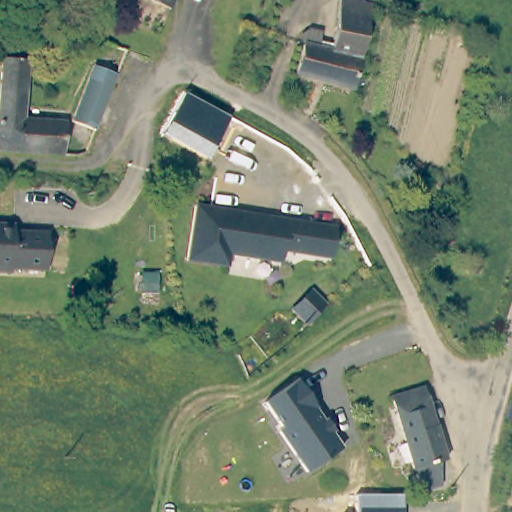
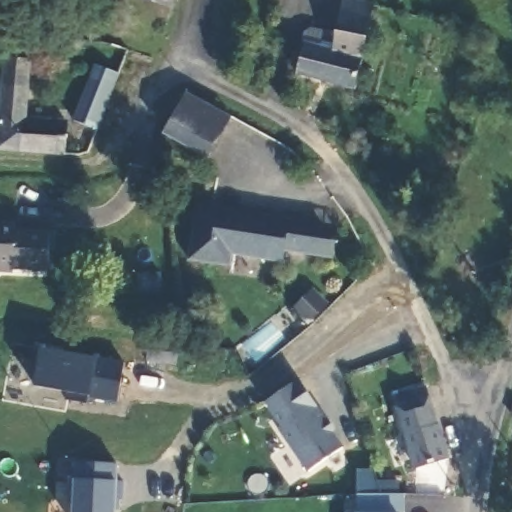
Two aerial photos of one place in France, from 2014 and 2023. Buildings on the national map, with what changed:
unchanged [(169,0),(165,10),(138,0),(169,0)]
unchanged [(290,78),(296,51),(330,57),(339,13),(342,0),(351,0),(372,5),(369,19),(353,89),(354,94),(290,79),(290,78)]
unchanged [(216,63),(225,21),(246,27),(237,68),(216,63)]
unchanged [(73,124),(80,106),(95,67),(118,76),(102,118),(96,132),(73,124)]
unchanged [(0,68),(20,68),(19,123),(18,143),(8,143),(0,143),(0,68)]
unchanged [(231,117),(208,159),(162,134),(187,94),(231,117)]
unchanged [(64,127),(63,152),(17,150),(18,143),(19,123),(27,124),(64,127)]
unchanged [(281,251),(278,263),(228,255),(226,266),(185,260),(192,207),(192,205),(231,211),(317,224),(333,227),(328,259),(312,256),(281,251)]
unchanged [(10,232),(45,231),(45,256),(45,267),(10,268),(10,272),(0,272),(0,225),(10,226),(10,232)]
new [(39,346),(63,350),(64,347),(96,353),(95,356),(123,362),(116,402),(85,396),(84,404),(63,400),(64,392),(32,386),(39,346)]
unchanged [(306,475),(276,433),(281,430),(262,404),(296,380),(342,449),(306,475)]
unchanged [(435,425),(446,459),(413,469),(390,398),(424,387),(428,402),(435,425)]
new [(67,479),(73,480),(74,462),(115,464),(114,481),(122,482),(121,500),(113,500),(113,512),(72,512),(72,501),(67,500),(67,479)]
unchanged [(401,512),(356,512),(356,495),(401,496),(401,512)]

